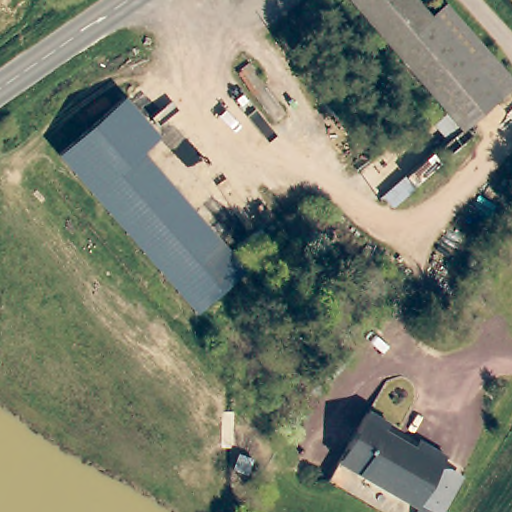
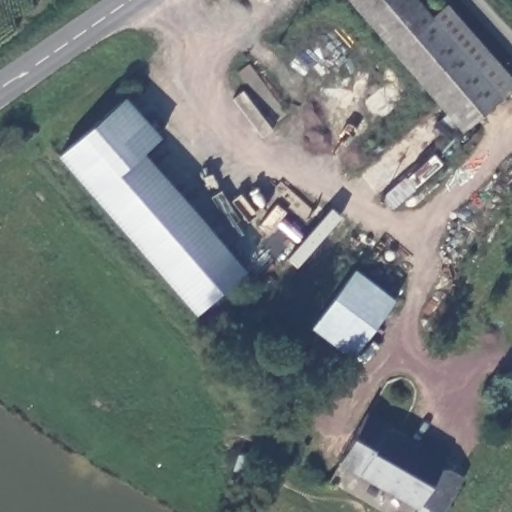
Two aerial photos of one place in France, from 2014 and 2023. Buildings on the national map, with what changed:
unchanged [(347,0),(413,0),(430,20),(446,6),(512,84),(512,89),(461,132),(347,0)]
unchanged [(121,96),(157,136),(139,152),(241,266),(196,307),(58,153),(121,96)]
new [(352,357),(310,327),(355,269),(396,300),(352,357)]
unchanged [(343,450),(364,413),(385,426),(381,431),(420,454),(425,447),(443,458),(413,509),(351,473),(335,463),(343,450)]
unchanged [(440,464),(462,478),(442,512),(412,512),(413,509),(440,464)]

